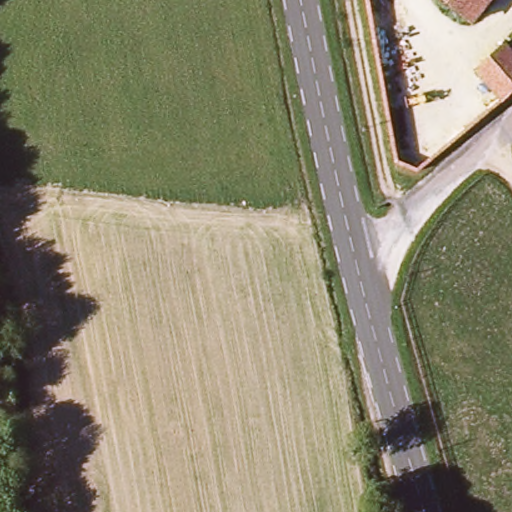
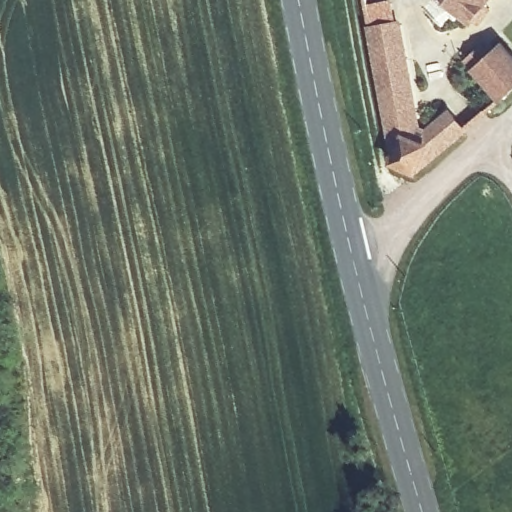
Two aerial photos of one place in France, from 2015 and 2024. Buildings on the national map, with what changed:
new [(389,164),(364,5),(389,0),(392,0),(397,21),(402,20),(421,125),(427,129),(450,108),(470,131),(418,175),(389,164)]
unchanged [(450,0),(493,0),(477,22),(450,0)]
unchanged [(512,91),(507,96),(478,68),(502,45),(512,54),(512,91)]

